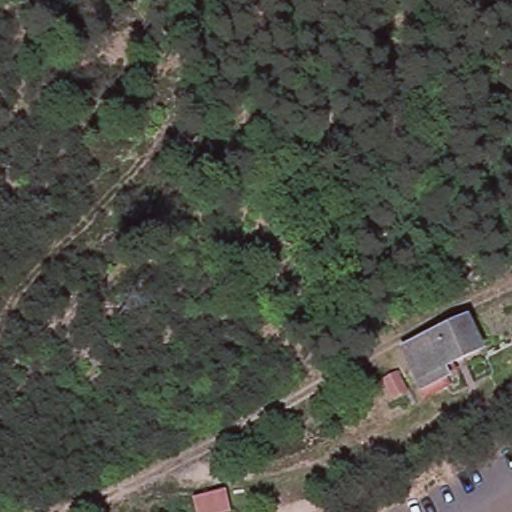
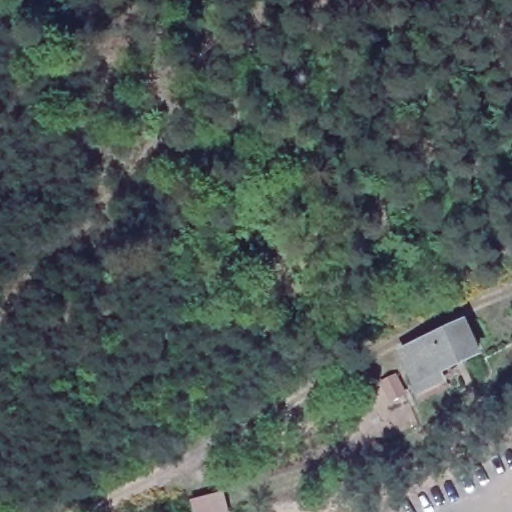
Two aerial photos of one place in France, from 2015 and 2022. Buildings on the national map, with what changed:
unchanged [(458,322),(471,348),(443,362),(450,376),(440,381),(444,389),(420,400),(398,352),(458,322)]
unchanged [(397,378),(408,400),(389,407),(380,386),(397,378)]
unchanged [(198,458),(204,478),(173,487),(167,467),(198,458)]

